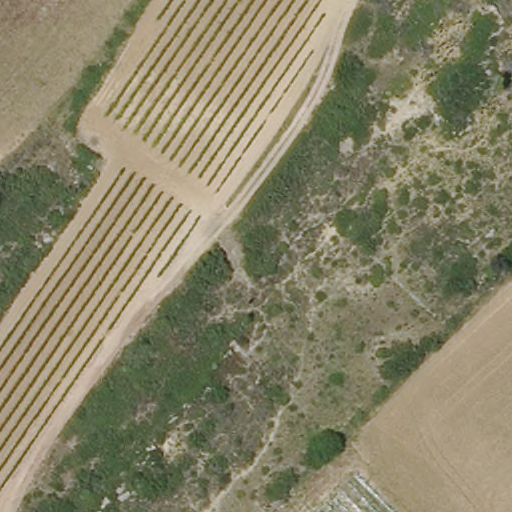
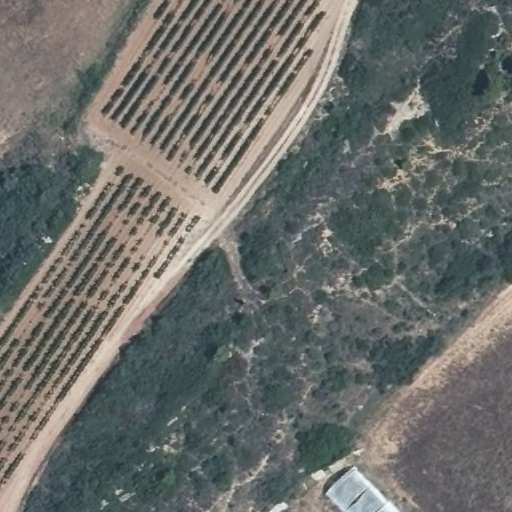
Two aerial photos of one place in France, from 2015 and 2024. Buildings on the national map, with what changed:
new [(346,512),(328,493),(355,465),(399,512),(346,512)]

